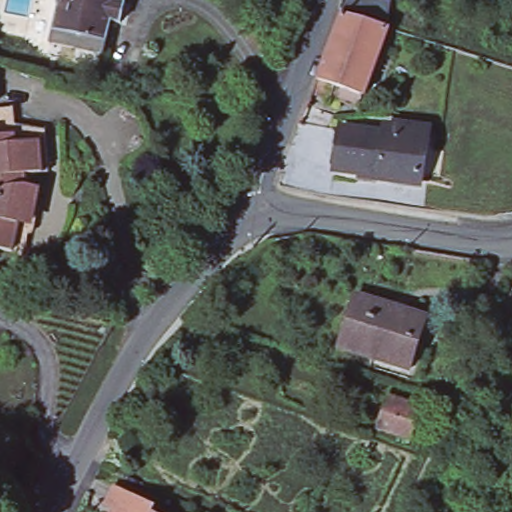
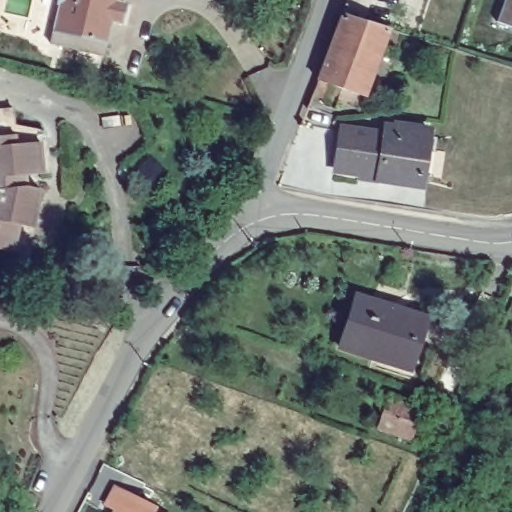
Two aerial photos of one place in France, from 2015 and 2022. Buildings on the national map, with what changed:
unchanged [(130,4),(121,27),(112,24),(102,58),(50,44),(61,0),(122,0),(130,4)]
new [(498,22),(505,0),(512,0),(512,26),(498,22)]
unchanged [(318,84),(343,18),(346,1),(368,4),(392,8),(390,34),(365,102),(337,91),(332,102),(314,97),(318,84)]
unchanged [(5,130),(34,129),(40,171),(19,177),(20,187),(0,188),(0,112),(3,112),(5,130)]
unchanged [(421,195),(380,188),(378,184),(338,178),(345,131),(387,138),(388,132),(400,134),(401,130),(431,135),(421,195)]
unchanged [(41,189),(36,216),(27,214),(18,257),(0,253),(0,188),(20,187),(41,189)]
unchanged [(375,365),(339,353),(356,301),(426,323),(410,370),(377,359),(375,365)]
unchanged [(390,397),(422,409),(410,442),(377,429),(390,397)]
unchanged [(105,506),(113,489),(153,510),(152,512),(114,512),(115,511),(105,506)]

